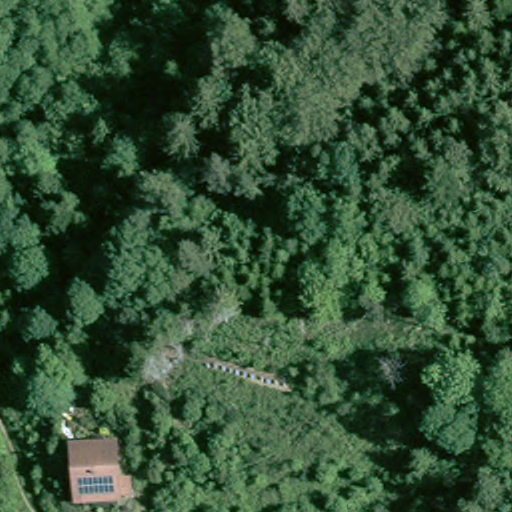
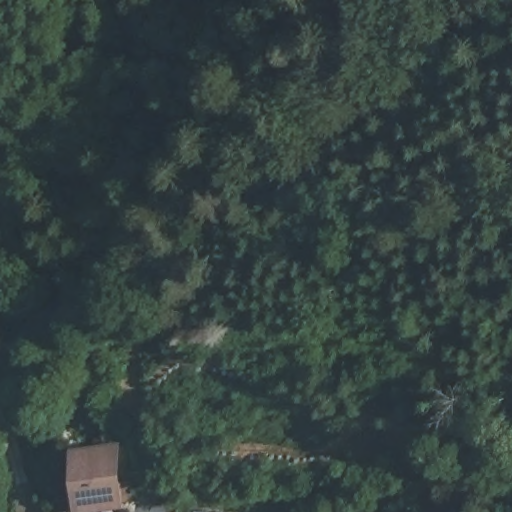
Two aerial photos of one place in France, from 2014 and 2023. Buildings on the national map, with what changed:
unchanged [(120,501),(107,500),(107,502),(69,500),(72,446),(110,448),(108,485),(121,485),(120,501)]

